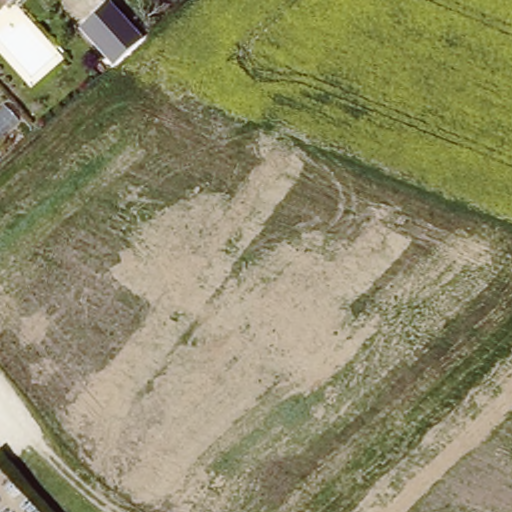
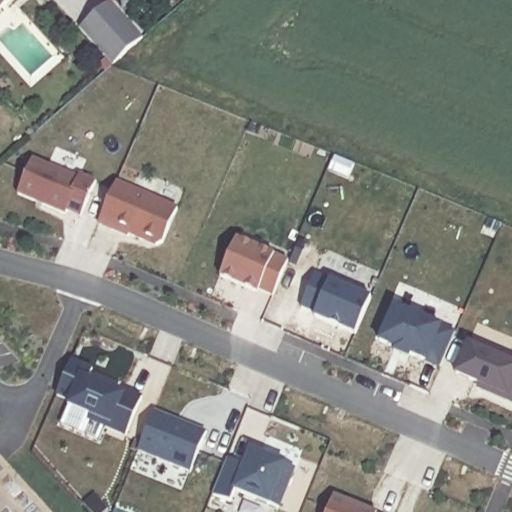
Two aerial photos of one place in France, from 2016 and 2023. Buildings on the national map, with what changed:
unchanged [(0,14),(0,0),(15,0),(0,14)]
new [(110,2),(144,39),(113,66),(80,29),(110,2)]
new [(80,218),(66,213),(65,215),(17,195),(33,158),(75,175),(77,173),(97,181),(80,218)]
new [(164,242),(155,248),(129,237),(128,239),(98,226),(117,182),(177,208),(164,242)]
new [(273,298),(257,293),(217,277),(235,237),(275,254),(288,259),(273,298)]
new [(355,335),(313,317),(300,308),(314,272),(330,280),(371,298),(355,335)]
new [(440,369),(427,363),(410,356),(409,360),(392,352),(393,351),(377,343),(394,305),(442,326),(457,332),(440,369)]
new [(476,385),(452,376),(467,341),(512,362),(512,405),(475,389),(476,385)]
new [(125,437),(86,420),(89,416),(67,406),(53,399),(71,360),(94,369),(89,378),(125,394),(127,391),(141,397),(125,437)]
new [(190,473),(138,452),(154,411),(205,431),(190,473)]
new [(280,509),(273,506),(234,491),(230,502),(212,497),(227,458),(242,464),(249,447),(287,463),(286,465),(295,470),(280,509)]
new [(376,512),(327,512),(334,495),(376,512)]

